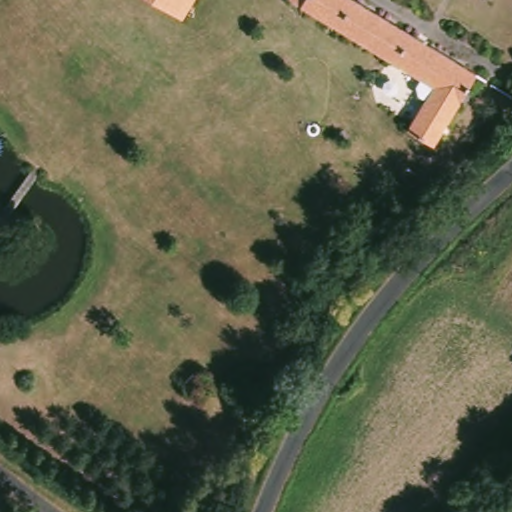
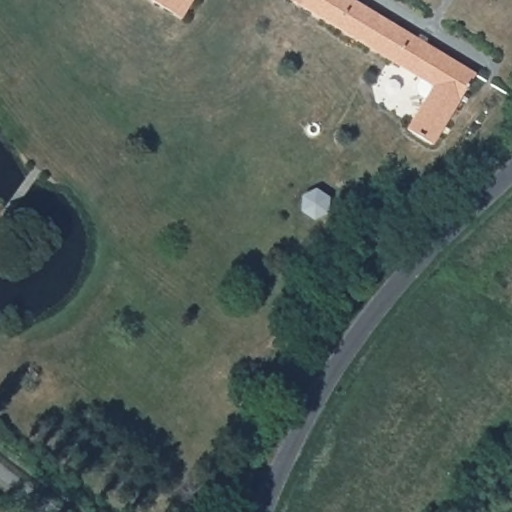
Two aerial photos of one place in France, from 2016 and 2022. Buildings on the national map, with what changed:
unchanged [(146,0),(192,0),(181,18),(146,0)]
unchanged [(350,0),(479,80),(436,151),(406,133),(421,108),(412,100),(410,97),(411,91),(411,88),(414,82),(283,3),(285,0),(350,0)]

